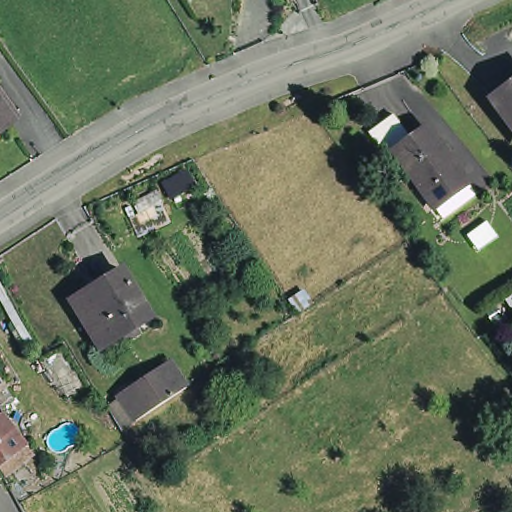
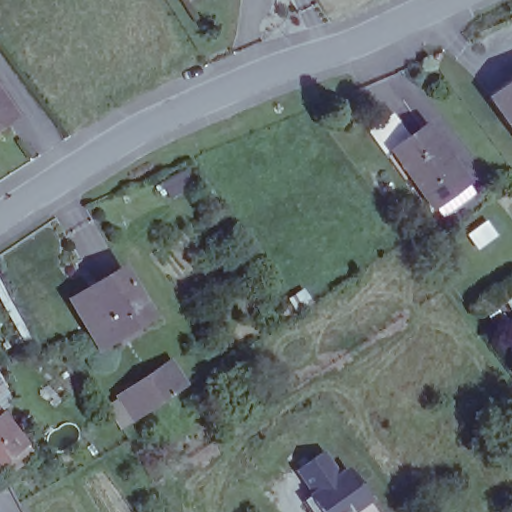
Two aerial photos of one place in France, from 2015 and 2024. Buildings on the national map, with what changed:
unchanged [(488,94),(512,76),(512,126),(488,94)]
unchanged [(0,126),(0,86),(10,99),(19,112),(12,117),(0,126)]
unchanged [(470,179),(439,205),(395,154),(389,160),(368,135),(392,115),(412,138),(426,127),(470,179)]
unchanged [(91,289),(95,295),(126,276),(150,316),(99,347),(71,300),(91,289)]
unchanged [(112,396),(126,387),(167,360),(182,382),(182,383),(141,410),(126,420),(112,396)]
unchanged [(0,380),(2,383),(0,385),(0,380)]
unchanged [(32,454),(5,474),(0,469),(0,413),(25,445),(32,454)]
new [(360,512),(318,512),(308,498),(312,494),(295,470),(322,450),(339,472),(347,467),(372,502),(360,512)]

